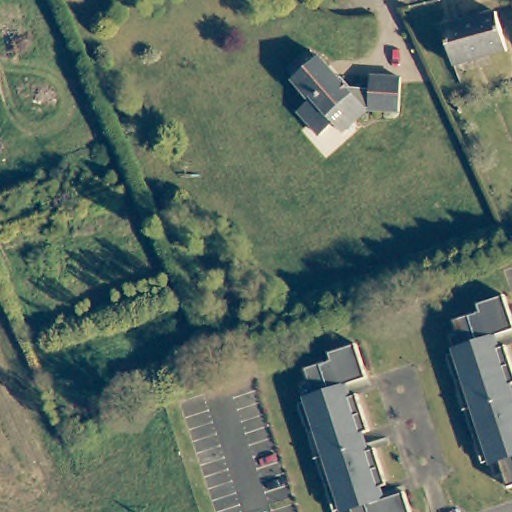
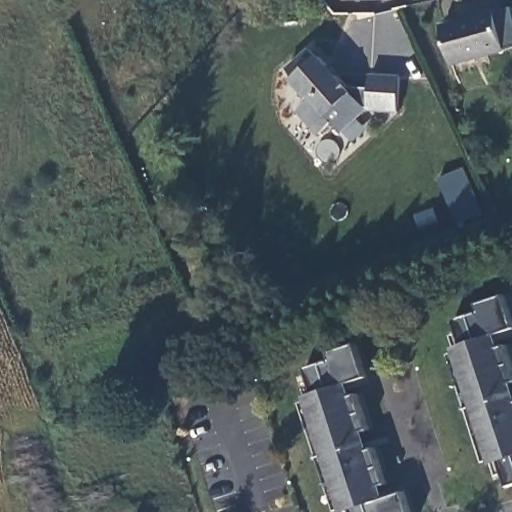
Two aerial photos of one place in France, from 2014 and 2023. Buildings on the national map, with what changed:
unchanged [(453,66),(446,29),(497,20),(504,56),(453,66)]
unchanged [(329,124),(315,136),(293,113),(303,104),(295,96),(298,93),(288,81),(291,80),(284,71),(305,54),(312,61),(315,59),(323,68),(319,71),(329,83),(332,80),(344,93),(365,94),(366,78),(394,79),(394,115),(361,113),(338,134),(329,124)]
new [(463,166),(483,213),(457,223),(438,179),(463,166)]
unchanged [(453,347),(462,344),(452,315),(478,306),(476,299),(503,290),(512,316),(512,324),(484,334),(488,345),(505,340),(512,361),(512,378),(501,382),(504,391),(472,401),(453,347)]
unchanged [(305,396),(313,394),(303,364),(329,356),(327,348),(354,339),(365,373),(336,383),(340,395),(356,390),(368,426),(352,431),(355,440),(323,451),(305,396)]
unchanged [(504,391),(506,399),(512,397),(512,481),(508,482),(498,453),(490,456),(472,401),(504,391)]
unchanged [(355,440),(358,449),(374,444),(386,480),(370,486),(374,497),(404,487),(412,512),(353,512),(350,503),(341,506),(323,451),(355,440)]

